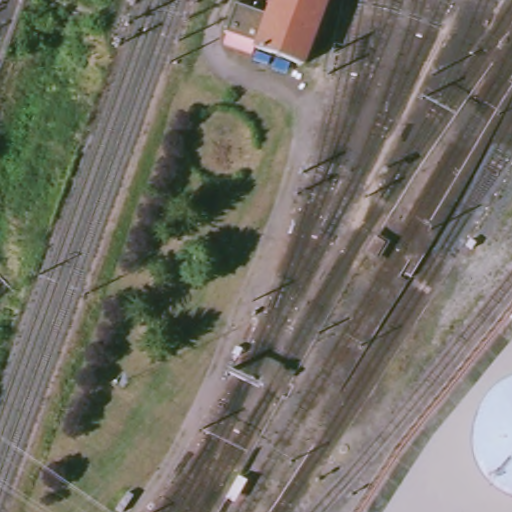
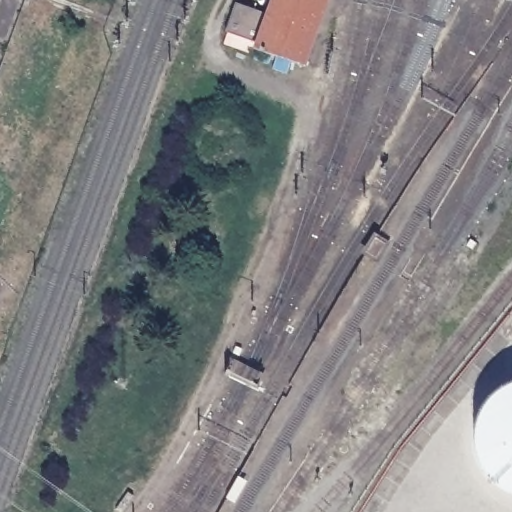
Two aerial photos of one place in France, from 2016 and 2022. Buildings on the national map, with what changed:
unchanged [(254,42),(225,33),(235,3),(264,14),(269,0),(330,0),(307,68),(252,49),(254,42)]

